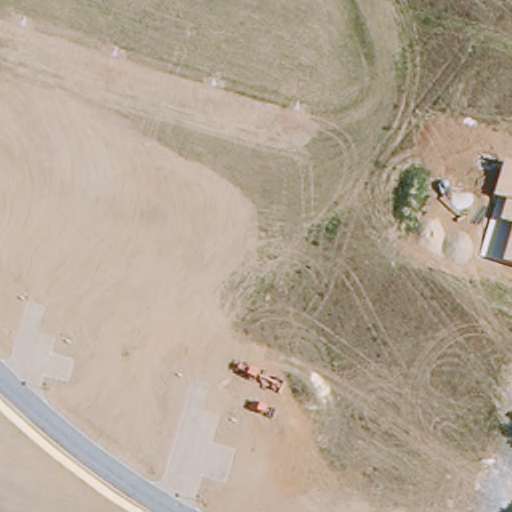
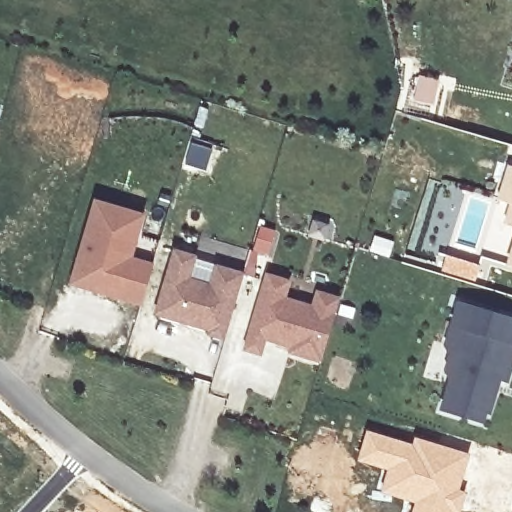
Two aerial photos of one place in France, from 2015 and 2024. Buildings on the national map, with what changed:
unchanged [(510,206),(496,201),(506,165),(512,167),(512,226),(503,224),(510,206)]
new [(69,286),(94,204),(117,211),(141,217),(134,241),(129,260),(151,268),(140,307),(96,294),(85,291),(69,286)]
unchanged [(512,242),(512,267),(505,265),(512,242)]
new [(153,315),(172,251),(192,257),(185,280),(209,286),(214,267),(241,275),(222,340),(206,335),(207,331),(186,325),(178,322),(153,315)]
new [(285,281),(281,298),(310,307),(315,292),(336,298),(331,313),(317,362),(286,352),(288,347),(261,340),(257,355),(241,350),(263,275),(285,281)]
unchanged [(500,380),(491,415),(487,413),(483,423),(438,410),(448,378),(443,370),(447,355),(443,345),(455,300),(512,318),(512,372),(509,383),(500,380)]
new [(365,428),(410,442),(413,435),(470,452),(460,488),(466,490),(460,512),(410,512),(413,503),(377,491),(384,469),(355,460),(365,428)]

